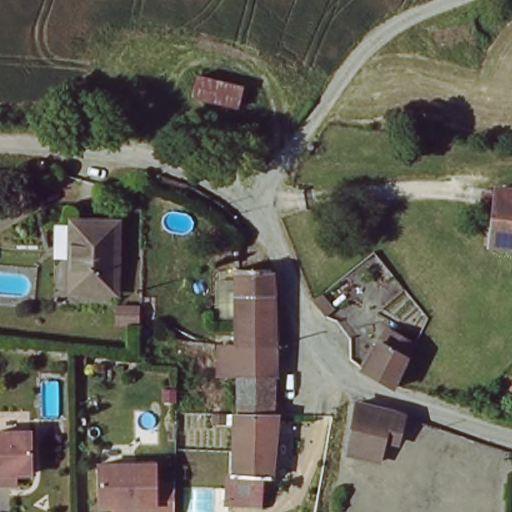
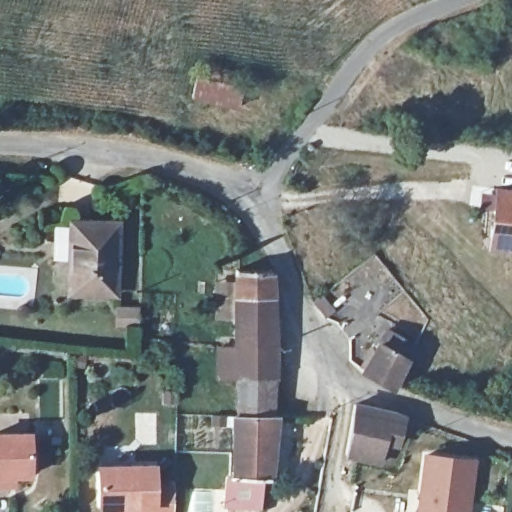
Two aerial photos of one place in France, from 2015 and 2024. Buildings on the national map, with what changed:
unchanged [(195,74),(243,85),(237,109),(189,98),(195,74)]
unchanged [(512,248),(490,245),(496,188),(512,190),(512,248)]
unchanged [(121,223),(119,292),(75,291),(77,256),(60,256),(61,227),(77,227),(77,222),(121,223)]
unchanged [(223,346),(239,348),(241,272),(274,269),(276,269),(278,287),(278,325),(280,348),(278,415),(238,415),(238,375),(222,373),(223,346)]
unchanged [(311,301),(321,293),(334,309),(325,318),(311,301)]
unchanged [(406,360),(395,385),(394,388),(364,370),(378,344),(386,330),(414,345),(405,360),(406,360)]
unchanged [(405,416),(397,442),(384,439),(379,461),(345,453),(354,403),(393,412),(405,416)]
unchanged [(229,423),(216,423),(217,415),(230,415),(229,423)]
unchanged [(278,415),(282,415),(276,480),(275,480),(274,489),(264,489),(264,506),(232,504),(232,476),(235,476),(235,475),(239,475),(238,415),(278,415)]
unchanged [(4,480),(0,481),(0,428),(25,428),(25,469),(10,470),(10,480),(4,480)]
unchanged [(108,497),(94,498),(93,456),(130,455),(131,479),(146,478),(147,507),(115,508),(109,508),(108,497)]
new [(473,512),(416,512),(418,464),(473,466),(473,512)]

